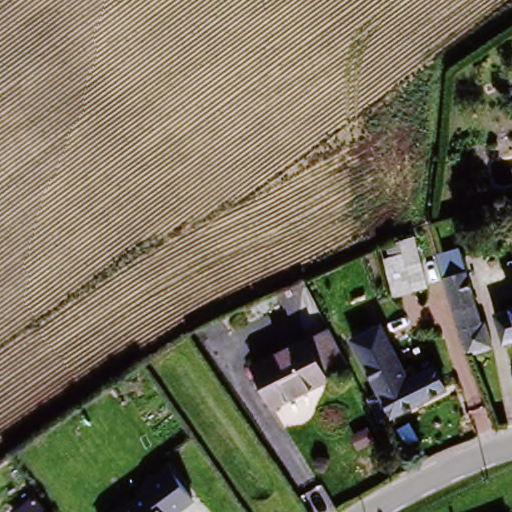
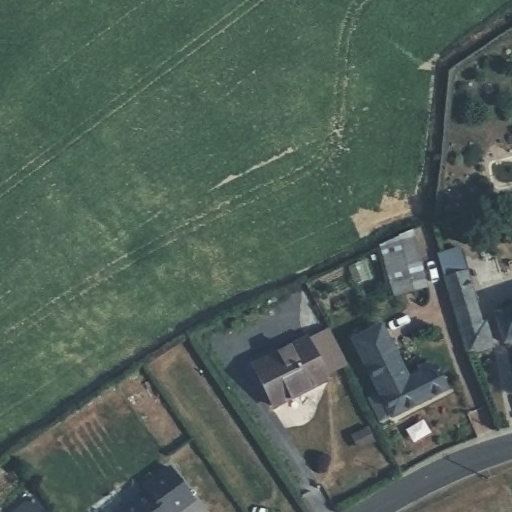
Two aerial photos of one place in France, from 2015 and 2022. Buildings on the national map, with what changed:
unchanged [(391,265),(409,260),(405,249),(415,246),(417,245),(426,268),(434,292),(432,292),(402,301),(391,265)]
unchanged [(490,333),(497,357),(473,366),(448,289),(442,270),(464,263),(470,282),(487,334),(490,333)]
unchanged [(495,319),(512,313),(512,345),(504,348),(495,319)]
unchanged [(387,337),(411,385),(438,372),(450,395),(397,422),(360,350),(387,337)]
unchanged [(350,376),(330,386),(332,389),(276,419),(255,377),(309,349),(311,351),(331,341),(334,339),(352,375),(350,376)]
unchanged [(175,512),(115,512),(141,492),(139,489),(170,467),(192,500),(175,512)]
unchanged [(40,512),(28,512),(36,506),(40,512)]

